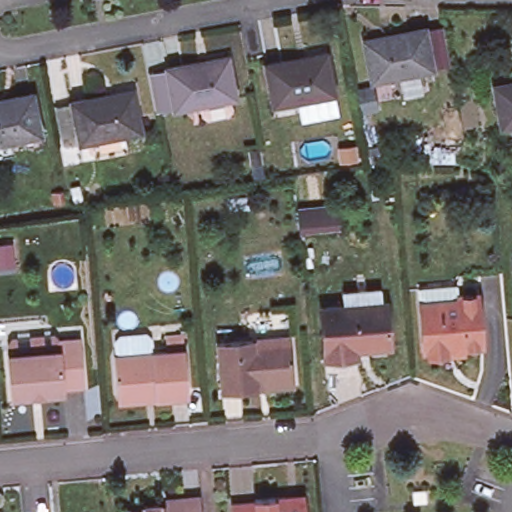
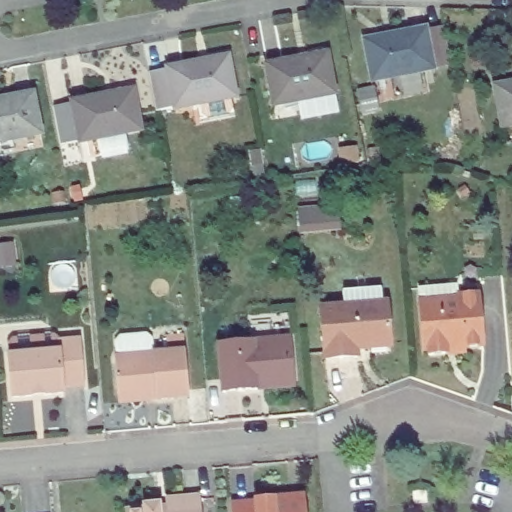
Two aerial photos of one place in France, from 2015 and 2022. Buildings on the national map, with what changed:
unchanged [(435,67),(373,80),(365,40),(426,27),(435,67)]
unchanged [(215,109),(212,96),(182,102),(182,101),(161,106),(154,67),(173,63),(173,62),(233,49),(242,89),(245,102),(215,109)]
unchanged [(295,116),(294,98),(267,101),(264,57),(325,51),(329,95),(331,112),(295,116)]
unchanged [(500,118),(492,77),(512,73),(512,115),(500,118)]
unchanged [(96,152),(92,135),(80,138),(71,97),(132,84),(142,125),(124,129),(127,145),(96,152)]
unchanged [(0,100),(34,93),(42,133),(12,139),(14,148),(0,151),(0,100)]
unchanged [(388,347),(355,349),(355,357),(323,359),(320,308),(342,306),(342,292),(379,289),(380,303),(385,303),(388,347)]
unchanged [(487,351),(450,353),(450,359),(432,360),(432,355),(427,355),(423,309),(422,294),(461,291),(462,303),(482,301),(487,351)]
unchanged [(255,389),(221,391),(217,343),(289,337),(292,380),(293,386),(255,389)]
unchanged [(61,388),(62,393),(10,397),(5,354),(57,350),(57,340),(77,338),(82,386),(61,388)]
unchanged [(115,398),(112,361),(167,356),(165,344),(182,343),(184,355),(187,401),(154,404),(116,407),(115,398)]
unchanged [(422,496),(409,497),(409,486),(422,485),(422,496)]
unchanged [(235,504),(258,502),(257,499),(287,497),(307,496),(308,504),(309,512),(235,512),(235,504)]
unchanged [(134,512),(152,511),(152,505),(167,504),(167,508),(175,508),(174,499),(208,497),(209,512),(134,512)]

